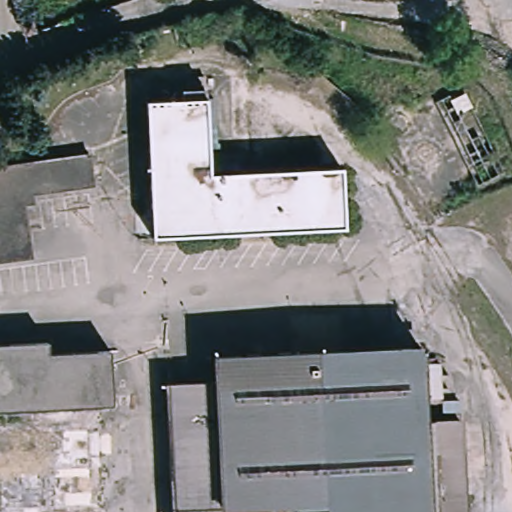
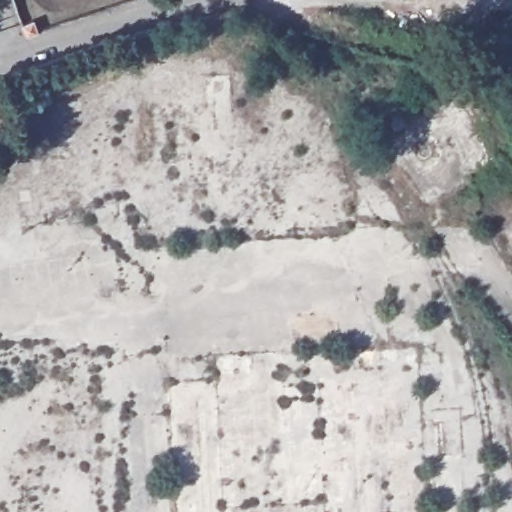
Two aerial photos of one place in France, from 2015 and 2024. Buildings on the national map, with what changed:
unchanged [(34,19),(38,32),(26,36),(25,35),(24,34),(23,31),(21,25),(34,19)]
demolished [(337,166),(340,228),(148,238),(141,101),(168,100),(167,90),(182,90),(181,76),(201,75),(206,174),(337,166)]
demolished [(467,91),(473,105),(459,111),(452,98),(467,91)]
demolished [(405,127),(404,128),(403,129),(403,130),(402,130),(401,131),(400,131),(399,131),(398,131),(397,131),(396,131),(395,131),(394,131),(393,131),(392,130),(392,129),(391,128),(390,128),(389,126),(389,124),(389,123),(389,121),(390,121),(390,120),(391,119),(391,118),(392,117),(393,116),(394,116),(395,116),(396,115),(397,115),(399,115),(400,116),(401,116),(402,117),(403,118),(404,118),(404,119),(405,120),(405,122),(405,124),(405,125),(405,126),(405,127)]
demolished [(237,151),(238,168),(210,169),(209,153),(237,151)]
demolished [(89,185),(14,196),(23,258),(0,261),(0,170),(85,158),(89,185)]
demolished [(55,353),(116,350),(119,406),(83,407),(37,410),(0,411),(0,344),(54,342),(55,353)]
demolished [(320,501),(217,506),(217,512),(172,512),(172,508),(166,379),(210,377),(209,353),(416,342),(417,358),(437,357),(439,393),(419,394),(420,416),(456,414),(460,512),(321,512),(320,501)]

